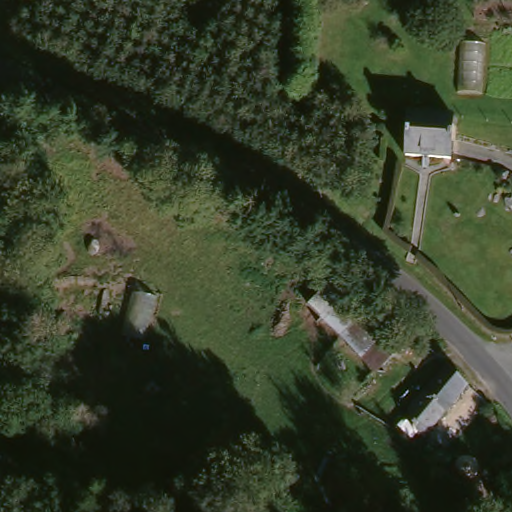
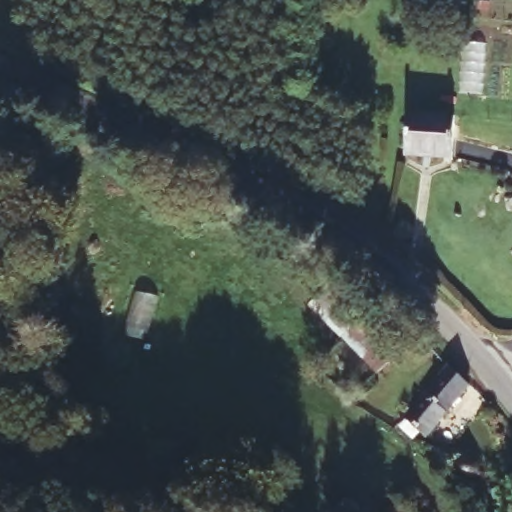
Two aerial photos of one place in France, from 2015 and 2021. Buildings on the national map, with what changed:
unchanged [(475,98),(454,97),(455,46),(477,47),(475,98)]
unchanged [(447,118),(446,161),(395,160),(395,117),(447,118)]
unchanged [(362,314),(404,350),(387,366),(350,330),(362,314)]
unchanged [(350,330),(387,366),(376,380),(332,346),(350,330)]
unchanged [(418,447),(394,427),(443,372),(464,394),(418,447)]
unchanged [(468,481),(467,484),(465,486),(462,487),(460,488),(455,488),(452,487),(450,484),(448,481),(447,477),(448,473),(450,471),(453,468),(456,467),(460,467),(463,468),(465,470),(467,472),(468,476),(469,478),(468,481)]

